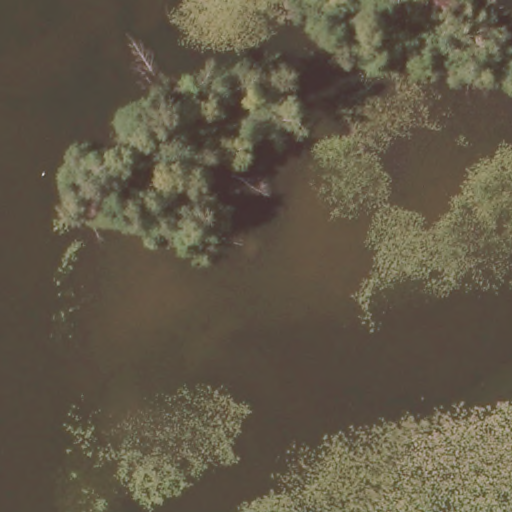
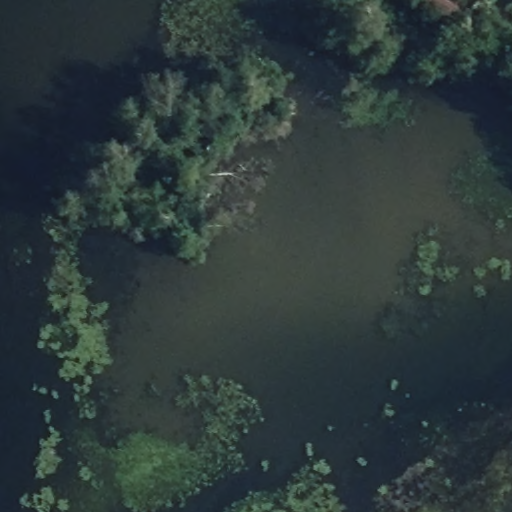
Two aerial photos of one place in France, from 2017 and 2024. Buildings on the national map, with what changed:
unchanged [(363,0),(381,0),(376,10),(362,2),(363,0)]
unchanged [(462,35),(451,28),(454,24),(414,0),(450,0),(463,7),(459,15),(470,21),(462,35)]

